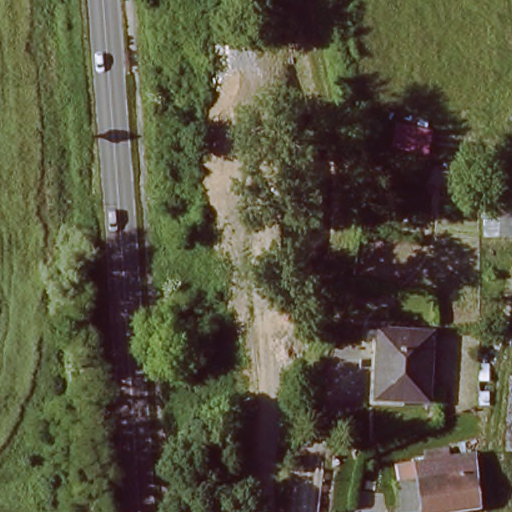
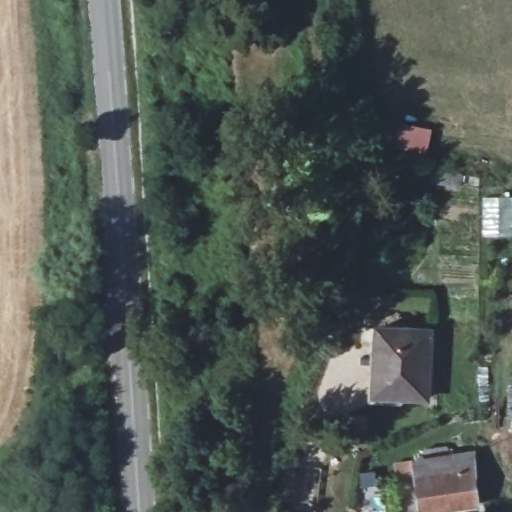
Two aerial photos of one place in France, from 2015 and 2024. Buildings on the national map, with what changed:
unchanged [(378,347),(379,328),(394,328),(429,331),(427,397),(389,395),(384,395),(374,395),(378,347)]
unchanged [(477,452),(482,503),(409,512),(404,512),(401,479),(419,477),(419,461),(447,457),(477,452)]
unchanged [(389,506),(389,512),(373,512),(373,508),(389,506)]

